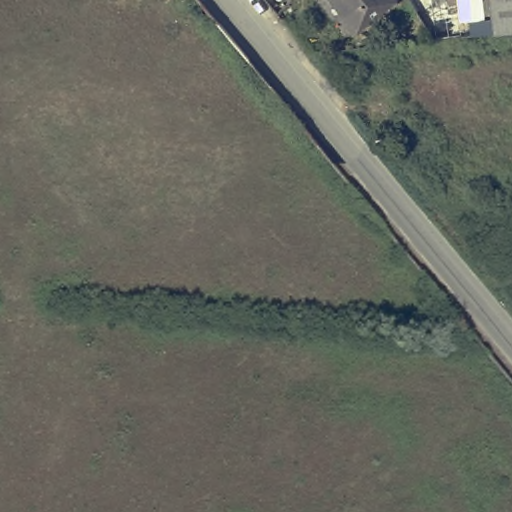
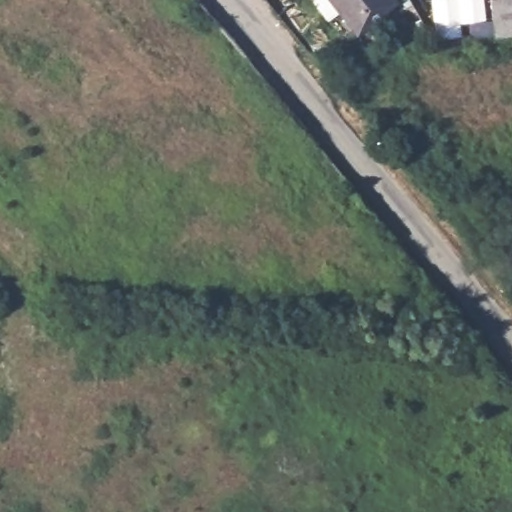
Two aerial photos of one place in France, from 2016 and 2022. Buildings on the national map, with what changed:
unchanged [(357,34),(329,0),(394,0),(396,2),(357,34)]
unchanged [(436,0),(433,1),(432,0),(436,0)]
unchanged [(490,0),(512,0),(512,33),(493,35),(470,36),(469,22),(492,20),(490,0)]

